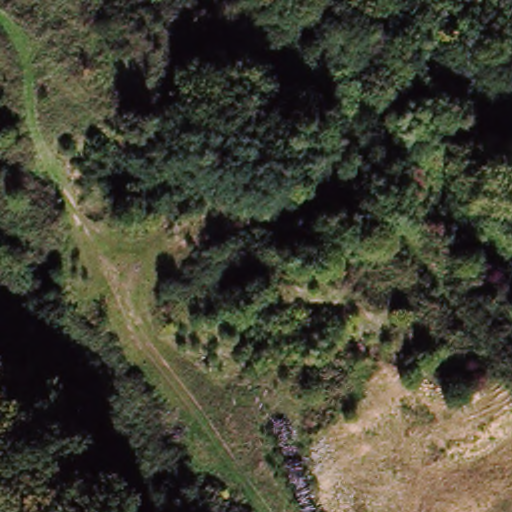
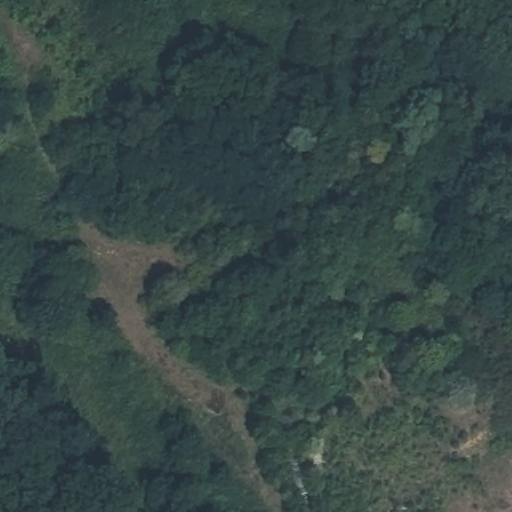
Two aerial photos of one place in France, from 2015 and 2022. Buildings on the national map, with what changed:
[]

